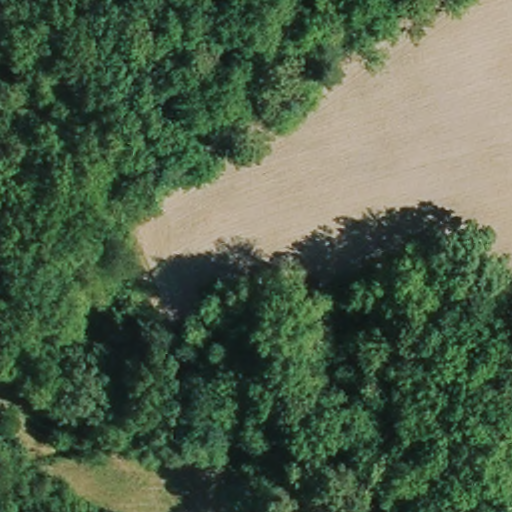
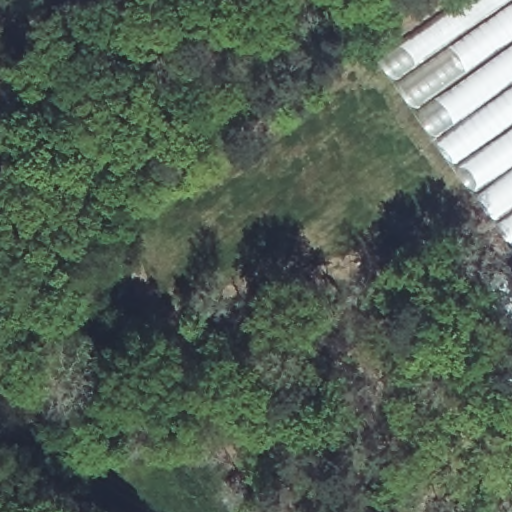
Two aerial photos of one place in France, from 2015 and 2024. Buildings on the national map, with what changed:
unchanged [(0,0),(6,0),(0,3),(0,0)]
new [(372,63),(465,0),(512,0),(512,246),(372,63)]

